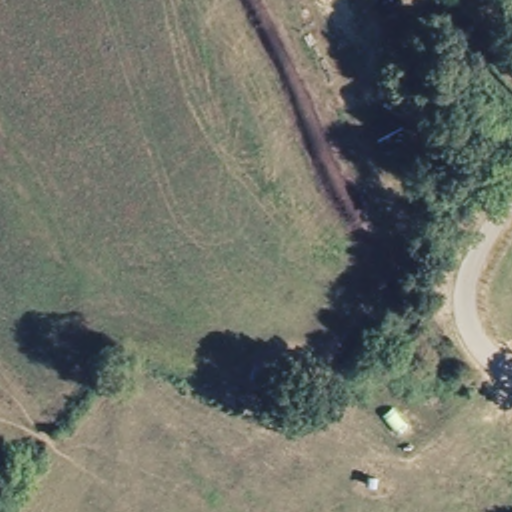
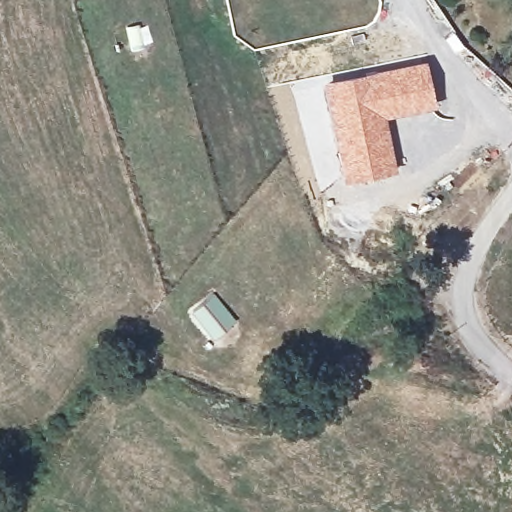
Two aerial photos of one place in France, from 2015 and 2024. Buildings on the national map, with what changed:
new [(378,69),(427,60),(437,107),(387,118),(397,169),(343,182),(322,83),(378,69)]

